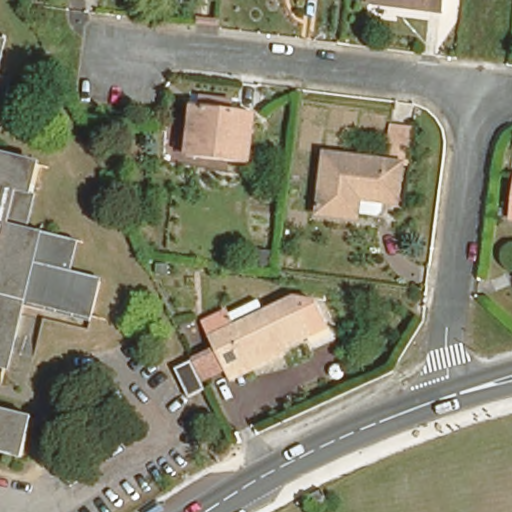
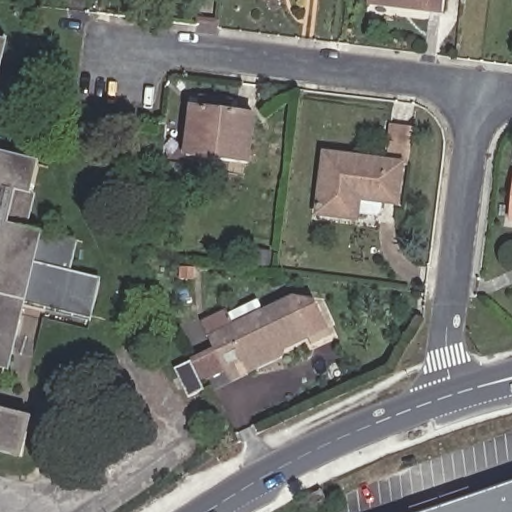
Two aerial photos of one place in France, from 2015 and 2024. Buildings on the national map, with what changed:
unchanged [(368,2),(368,0),(445,0),(444,11),(368,2)]
unchanged [(0,56),(0,43),(3,44),(0,56)]
unchanged [(254,114),(248,159),(186,151),(193,106),(254,114)]
unchanged [(325,152),(363,158),(383,161),(388,126),(412,129),(408,164),(401,162),(396,202),(358,197),(356,217),(318,212),(325,152)]
unchanged [(19,232),(70,245),(62,277),(96,286),(88,322),(18,305),(1,373),(0,373),(0,162),(34,170),(19,232)]
unchanged [(510,222),(512,208),(512,223),(510,222)]
unchanged [(227,382),(221,371),(199,325),(222,314),(225,321),(255,307),(259,315),(288,302),(310,306),(326,338),(307,347),(304,339),(273,353),(275,359),(227,382)]
unchanged [(206,401),(205,401),(190,407),(177,379),(192,372),(206,401)]
unchanged [(24,457),(16,456),(17,452),(0,448),(0,408),(33,417),(24,457)]
new [(409,507),(470,487),(472,496),(512,482),(512,512),(411,512),(409,507)]
unchanged [(325,512),(312,512),(306,502),(324,493),(332,508),(325,512)]

